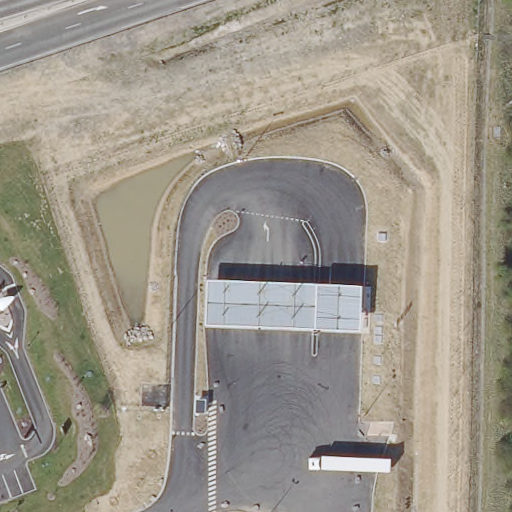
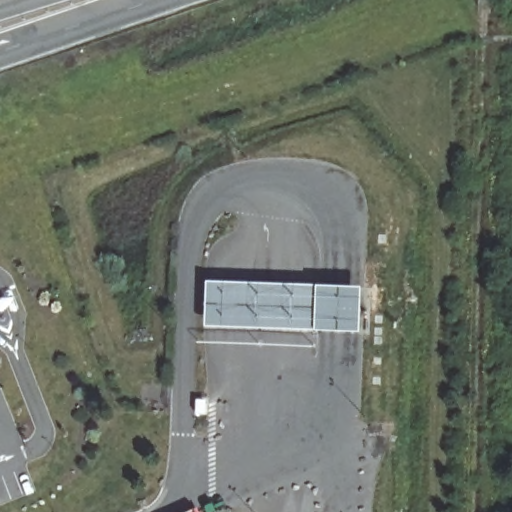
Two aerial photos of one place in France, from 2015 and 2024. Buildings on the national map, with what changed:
unchanged [(363,284),(362,330),(208,323),(210,277),(363,284)]

